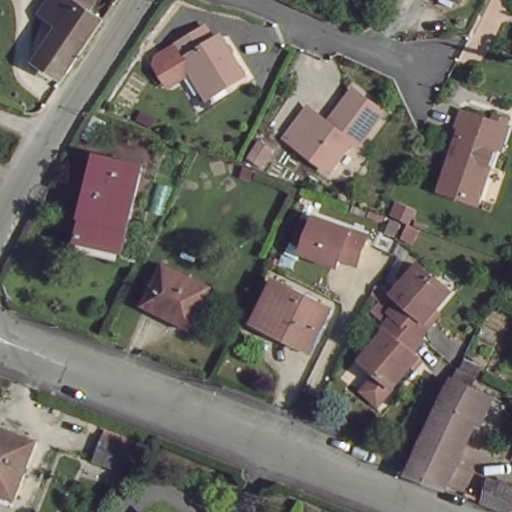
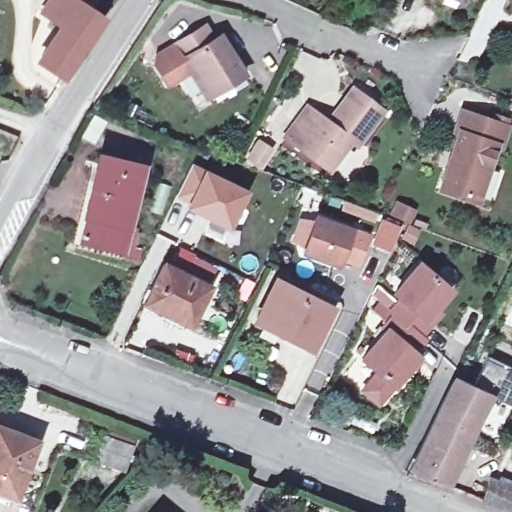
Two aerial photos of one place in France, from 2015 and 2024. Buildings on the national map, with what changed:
unchanged [(86,8),(101,16),(68,69),(43,55),(60,23),(48,16),(58,0),(92,0),(86,8)]
unchanged [(428,0),(436,0),(434,3),(428,0)]
unchanged [(458,4),(445,6),(442,0),(460,0),(458,4)]
unchanged [(201,20),(210,41),(222,37),(248,78),(205,100),(192,74),(174,37),(201,20)]
unchanged [(168,86),(148,56),(174,37),(192,74),(168,86)]
unchanged [(381,112),(355,144),(348,139),(325,167),(286,137),(306,111),(323,123),(351,88),(381,112)]
unchanged [(507,127),(476,203),(440,188),(464,133),(457,130),(465,110),(507,127)]
unchanged [(278,140),(265,159),(246,152),(261,129),(278,140)]
unchanged [(138,158),(123,241),(80,232),(95,150),(138,158)]
new [(192,162),(248,190),(230,229),(184,208),(185,205),(175,199),(192,162)]
unchanged [(358,263),(341,258),(339,265),(300,255),(314,216),(371,234),(358,263)]
unchanged [(211,288),(193,327),(146,305),(166,266),(211,288)]
unchanged [(388,313),(374,299),(377,292),(392,308),(395,305),(388,298),(416,271),(447,300),(421,325),(426,330),(416,339),(391,315),(388,313)]
unchanged [(288,294),(291,287),(313,298),(310,305),(330,315),(312,350),(254,320),(273,285),(288,294)]
unchanged [(416,339),(422,345),(409,359),(415,366),(375,405),(362,392),(376,379),(358,360),(383,337),(375,330),(391,315),(416,339)]
unchanged [(456,479),(450,476),(443,492),(415,481),(460,388),(470,368),(489,377),(480,397),(491,403),(456,479)]
unchanged [(11,493),(0,489),(0,429),(29,440),(11,493)]
unchanged [(133,445),(123,467),(98,457),(106,436),(133,445)]
unchanged [(512,485),(512,487),(504,506),(485,499),(488,476),(512,485)]

